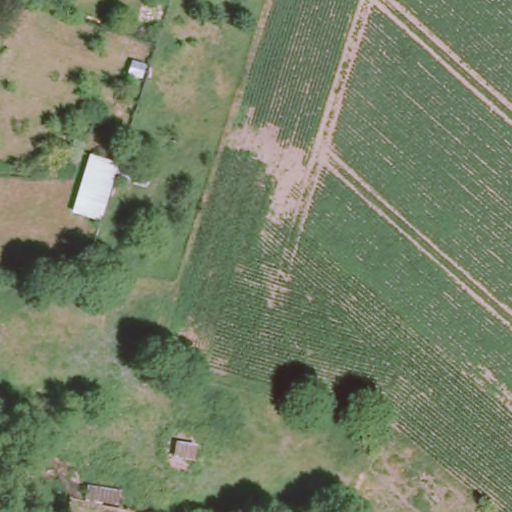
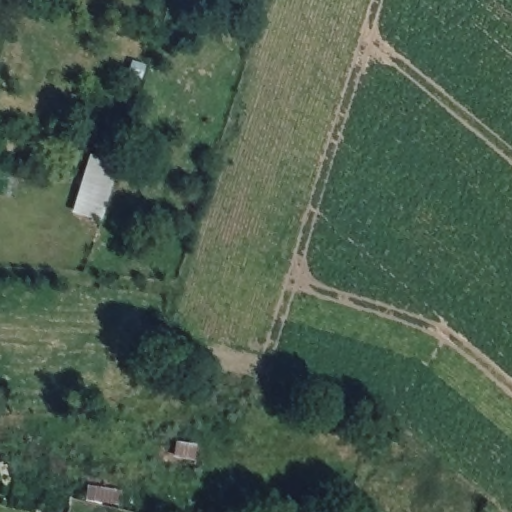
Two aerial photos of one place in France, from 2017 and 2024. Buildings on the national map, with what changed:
unchanged [(137,80),(118,131),(95,123),(114,75),(137,80)]
unchanged [(78,218),(96,161),(121,169),(103,226),(78,218)]

